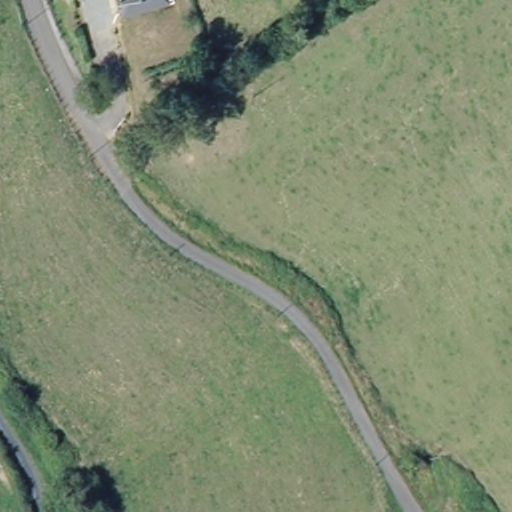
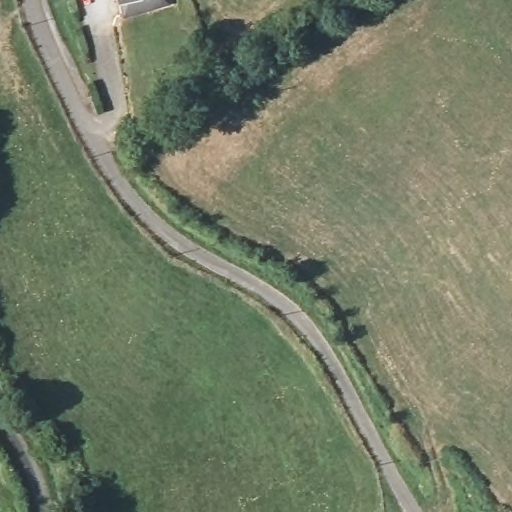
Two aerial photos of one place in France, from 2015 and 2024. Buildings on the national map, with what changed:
unchanged [(122,8),(121,0),(162,0),(122,8)]

